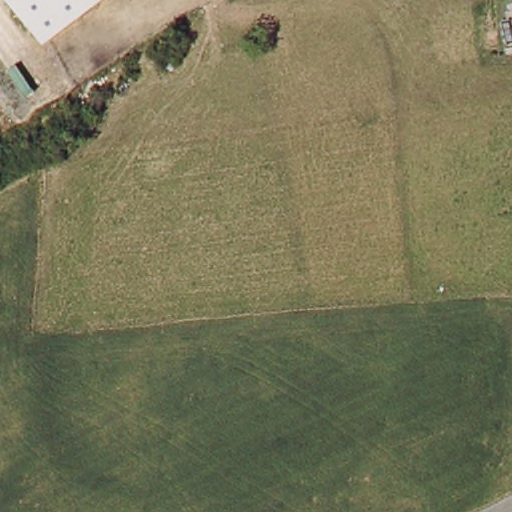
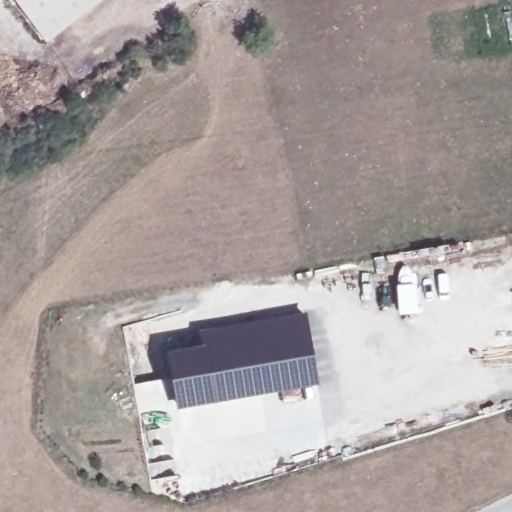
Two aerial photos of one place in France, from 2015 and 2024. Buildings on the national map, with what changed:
unchanged [(10,0),(102,0),(42,45),(10,0)]
new [(216,403),(178,410),(169,355),(206,350),(204,342),(218,340),(216,328),(306,315),(320,385),(216,403)]

